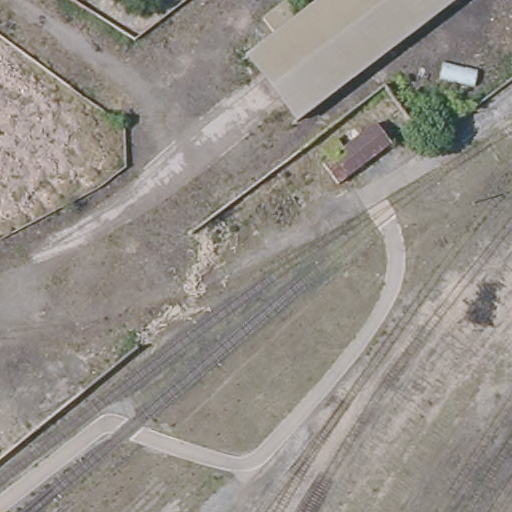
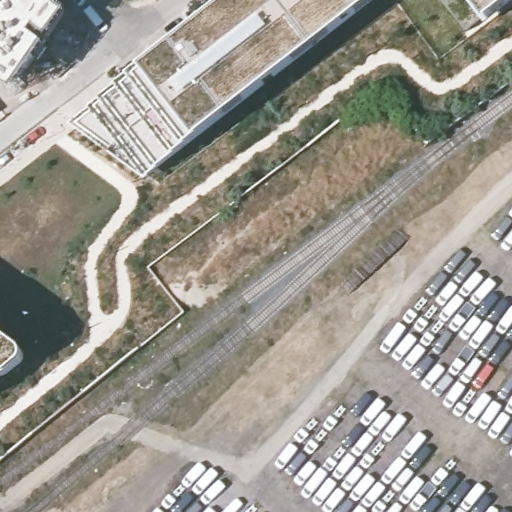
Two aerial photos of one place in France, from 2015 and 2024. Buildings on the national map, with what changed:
new [(15,93),(0,82),(0,0),(44,0),(69,17),(15,93)]
new [(142,70),(231,0),(377,0),(197,140),(145,181),(70,125),(92,110),(142,70)]
demolished [(248,51),(315,0),(451,0),(298,116),(248,51)]
new [(468,0),(512,0),(512,3),(486,23),(468,0)]
demolished [(341,185),(327,165),(368,135),(382,155),(341,185)]
new [(15,345),(22,351),(24,354),(24,359),(22,364),(12,373),(4,378),(0,379),(0,334),(15,345)]
demolished [(7,403),(59,360),(86,393),(34,435),(0,463),(0,395),(7,403)]

